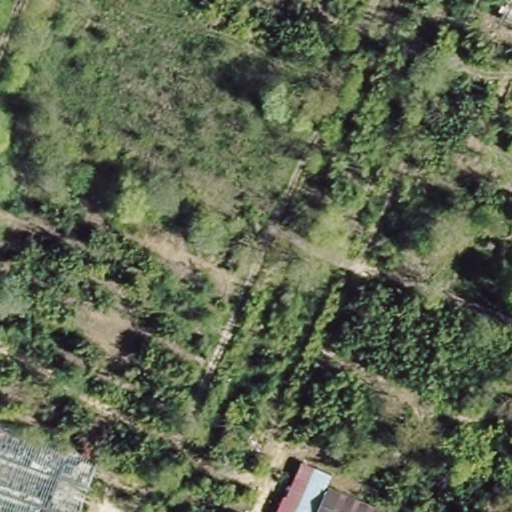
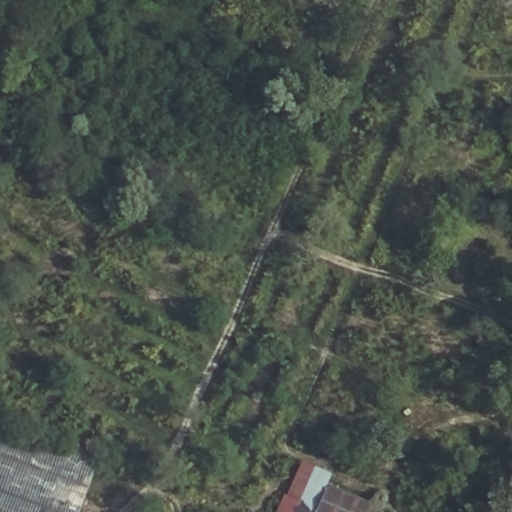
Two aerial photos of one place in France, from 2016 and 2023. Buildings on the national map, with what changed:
unchanged [(100,453),(80,512),(0,512),(0,419),(100,453)]
unchanged [(327,473),(323,483),(382,508),(380,512),(294,512),(311,468),(327,473)]
unchanged [(390,510),(393,497),(423,510),(422,512),(380,512),(382,508),(390,510)]

